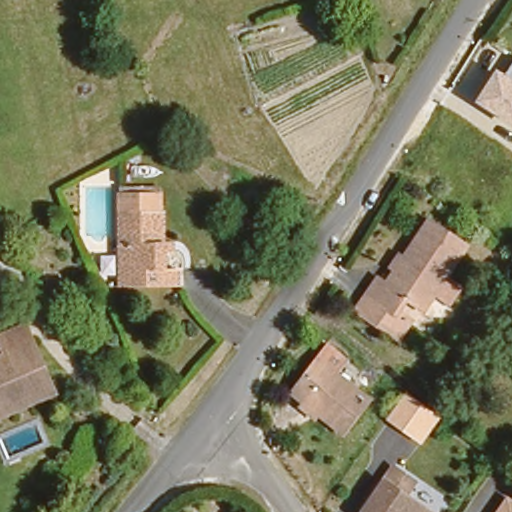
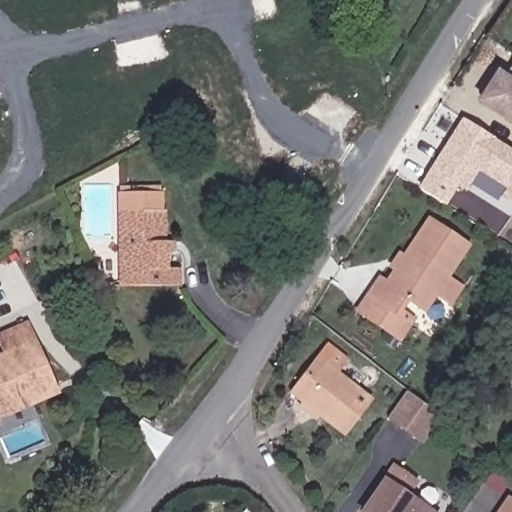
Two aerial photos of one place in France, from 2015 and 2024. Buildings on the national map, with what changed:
unchanged [(497,70),(503,75),(512,65),(512,124),(476,104),(497,70)]
new [(505,190),(477,172),(465,190),(458,185),(446,205),(418,186),(463,117),(512,150),(512,204),(500,196),(505,190)]
unchanged [(160,248),(162,266),(178,268),(179,283),(121,286),(116,212),(115,196),(156,195),(157,210),(160,236),(160,248)]
unchanged [(373,276),(381,280),(421,216),(460,240),(419,306),(397,292),(387,308),(362,294),(373,276)]
unchanged [(406,320),(393,340),(350,313),(362,294),(387,308),(406,320)]
unchanged [(20,406),(17,401),(0,410),(0,365),(10,360),(5,347),(0,337),(0,333),(25,322),(30,335),(55,391),(20,406)]
unchanged [(342,361),(335,373),(366,400),(342,432),(302,400),(289,390),(302,372),(320,346),(342,361)]
new [(423,440),(418,437),(391,415),(408,392),(436,413),(441,417),(423,440)]
unchanged [(417,502),(430,512),(361,512),(391,470),(423,493),(417,502)]
unchanged [(512,512),(496,512),(503,500),(507,503),(512,507),(512,512)]

